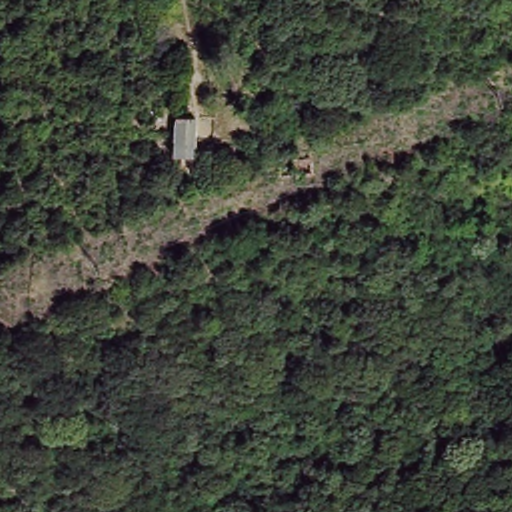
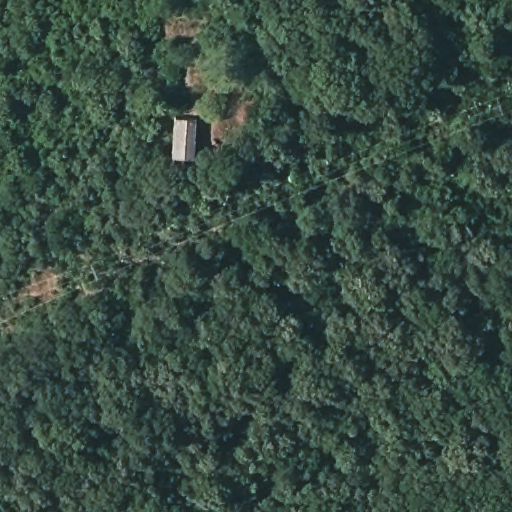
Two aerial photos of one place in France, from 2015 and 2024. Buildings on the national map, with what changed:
unchanged [(188,115),(188,142),(192,142),(191,157),(168,158),(169,115),(188,115)]
unchanged [(311,177),(293,178),(290,157),(309,153),(311,177)]

